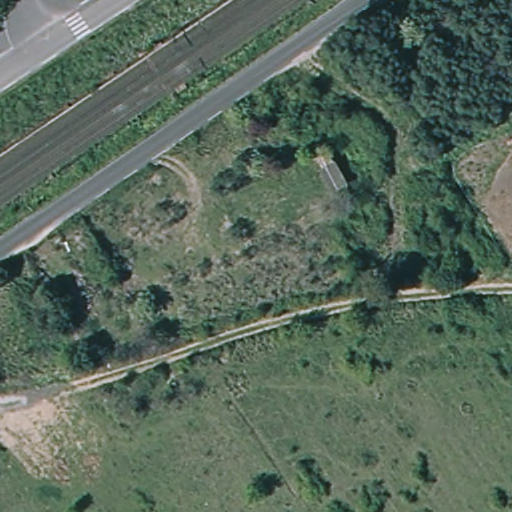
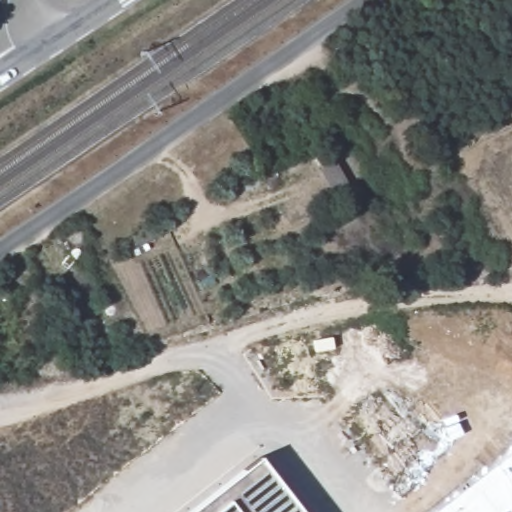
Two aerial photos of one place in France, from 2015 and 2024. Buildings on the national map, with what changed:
unchanged [(338,171),(326,177),(321,167),(333,160),(338,171)]
new [(512,453),(512,512),(436,512),(512,453)]
new [(260,457),(302,512),(189,512),(260,457)]

